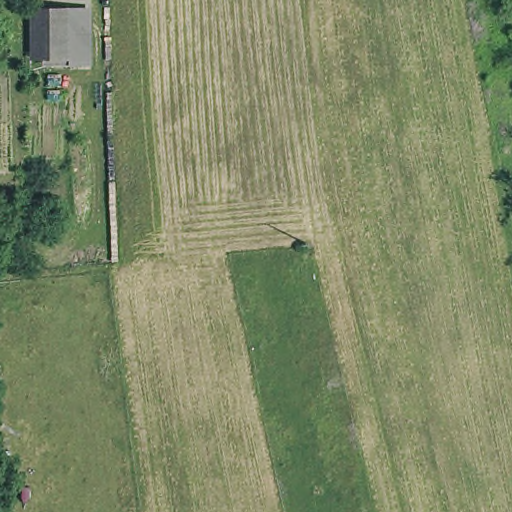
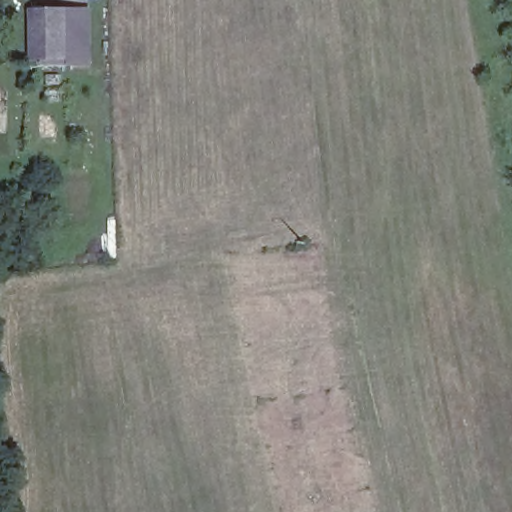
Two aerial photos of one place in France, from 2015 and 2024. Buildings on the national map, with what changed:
unchanged [(32,12),(43,12),(69,11),(70,27),(70,57),(43,58),(32,58),(32,12)]

